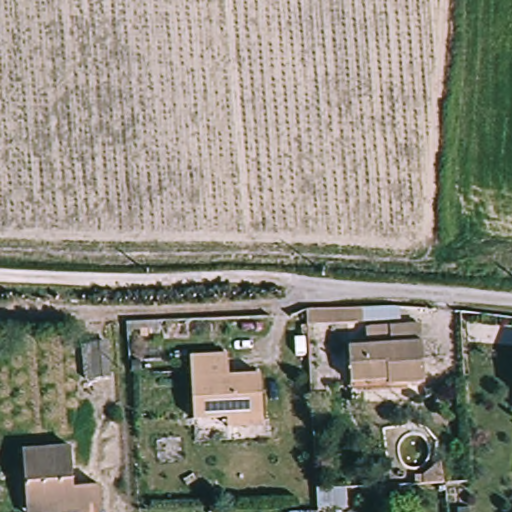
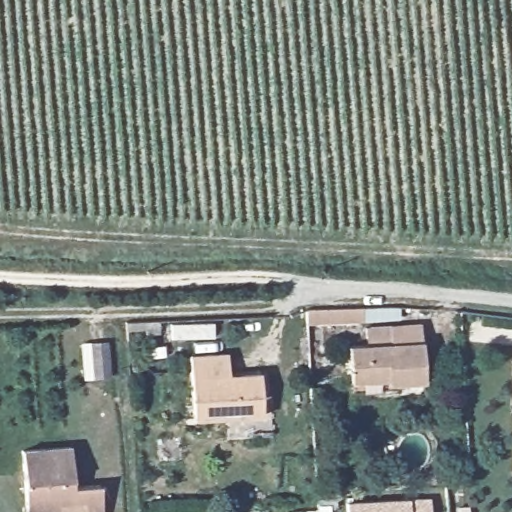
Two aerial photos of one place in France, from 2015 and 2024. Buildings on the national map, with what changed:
unchanged [(350,396),(349,381),(348,345),(420,342),(420,377),(383,379),(384,395),(350,396)]
unchanged [(192,433),(192,419),(188,353),(225,351),(226,375),(260,374),(262,415),(262,429),(192,433)]
unchanged [(511,406),(512,403),(512,407),(511,406)]
unchanged [(73,445),(74,484),(103,483),(103,512),(81,512),(81,503),(60,503),(60,512),(24,512),(21,447),(73,445)]
new [(429,497),(429,512),(345,512),(345,500),(409,498),(429,497)]
new [(330,512),(301,512),(318,510),(330,509),(330,512)]

